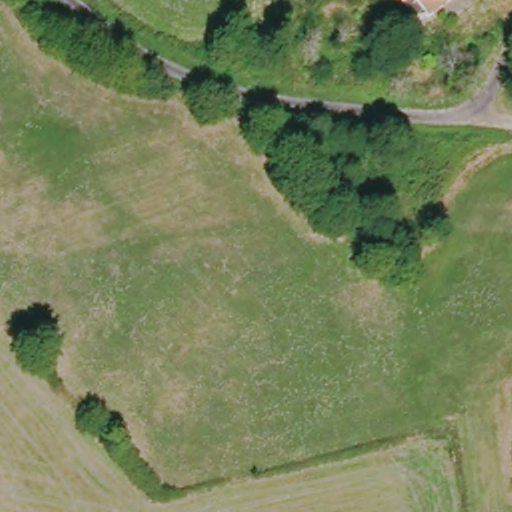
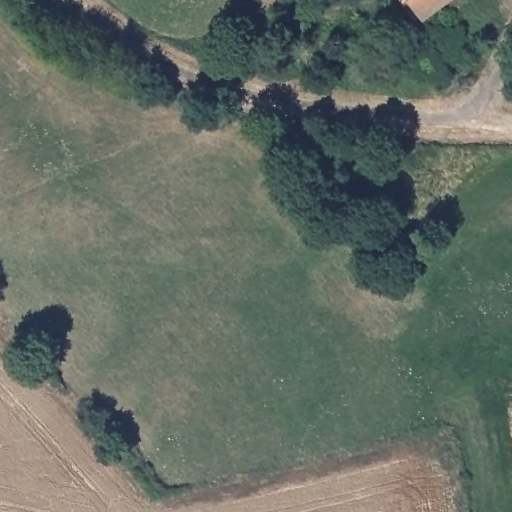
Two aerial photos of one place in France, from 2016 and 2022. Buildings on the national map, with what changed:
unchanged [(407,0),(447,0),(421,20),(407,0)]

